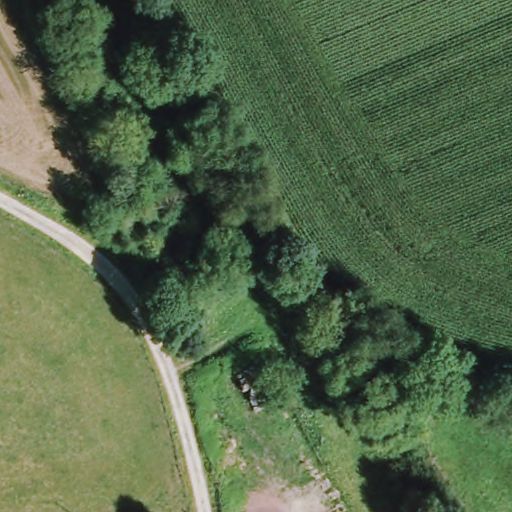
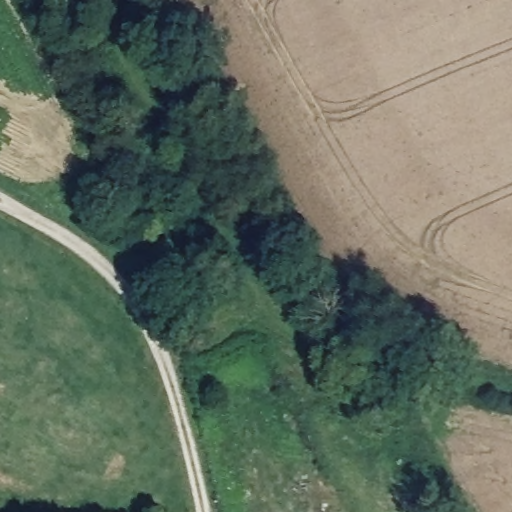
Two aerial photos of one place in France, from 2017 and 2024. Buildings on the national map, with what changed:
[]

